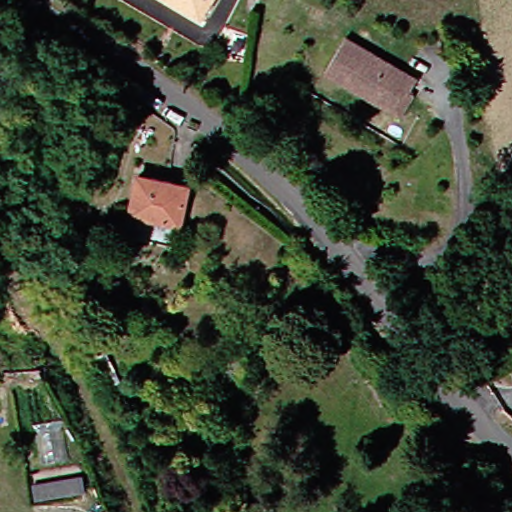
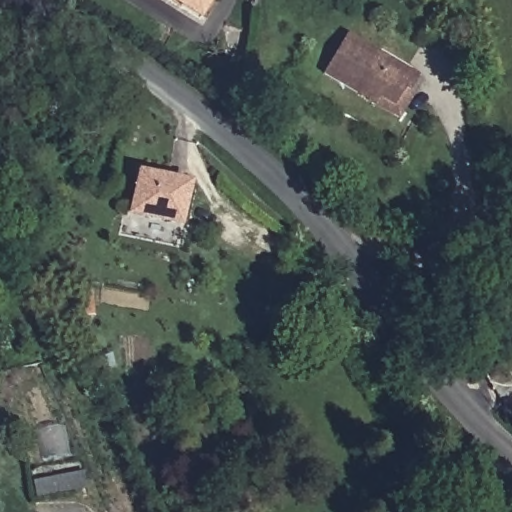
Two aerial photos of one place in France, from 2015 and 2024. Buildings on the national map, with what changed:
unchanged [(172,0),(218,0),(207,20),(172,0)]
unchanged [(410,96),(405,94),(396,107),(380,100),(375,107),(324,79),(345,41),(417,82),(410,96)]
unchanged [(189,226),(139,216),(147,174),(199,185),(189,226)]

